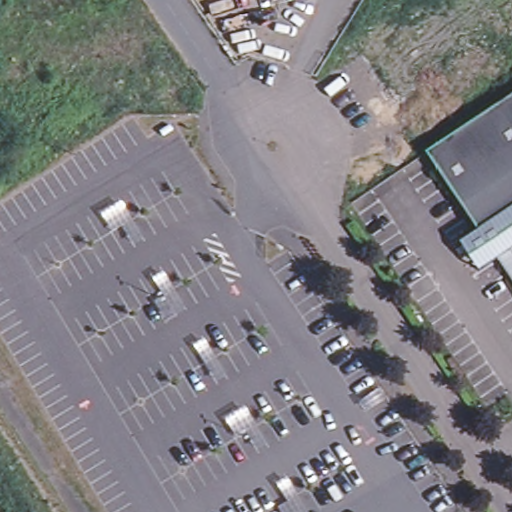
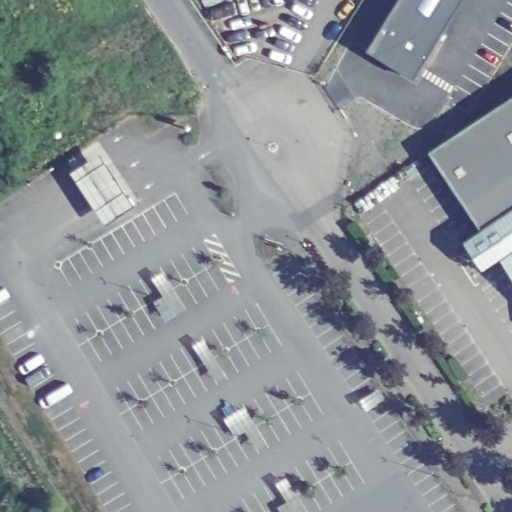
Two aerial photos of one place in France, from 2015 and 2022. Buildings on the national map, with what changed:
new [(366,53),(398,0),(464,0),(415,84),(366,53)]
unchanged [(487,266),(467,238),(480,230),(428,152),(512,96),(512,250),(499,258),(487,266)]
unchanged [(512,250),(512,278),(499,258),(512,250)]
unchanged [(430,291),(416,300),(409,290),(423,281),(430,291)]

